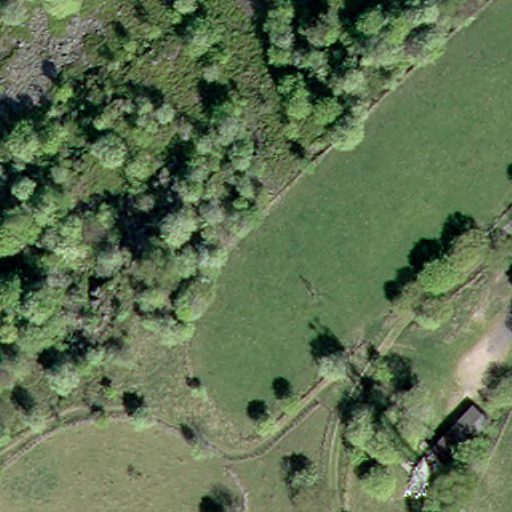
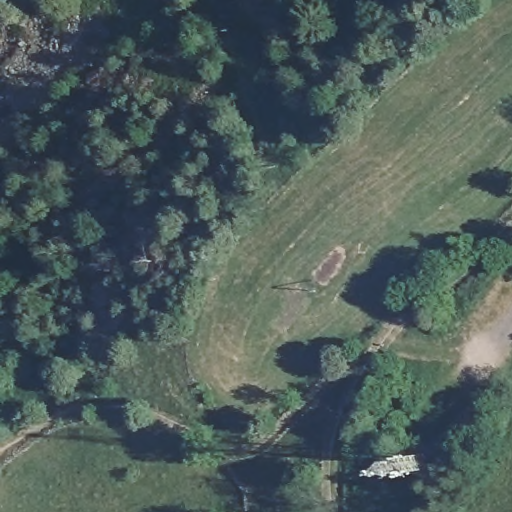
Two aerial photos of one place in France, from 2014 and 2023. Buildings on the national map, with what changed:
unchanged [(440,453),(478,410),(492,423),(493,425),(488,431),(462,460),(455,468),(439,453),(440,453)]

